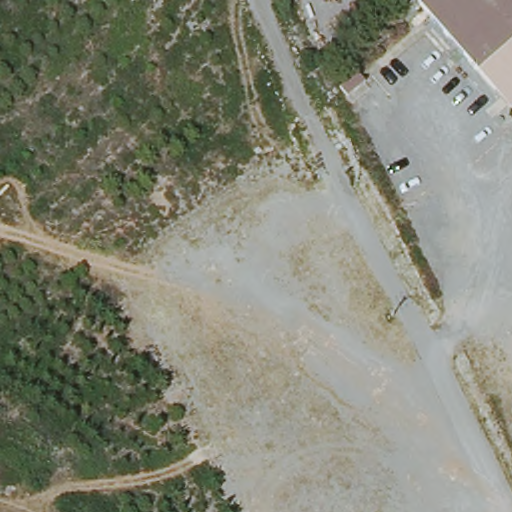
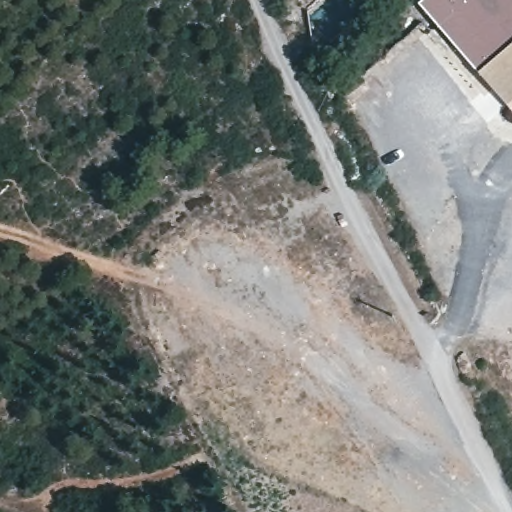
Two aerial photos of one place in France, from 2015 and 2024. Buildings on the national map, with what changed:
unchanged [(426,0),(512,0),(512,109),(421,5),(426,0)]
unchanged [(359,74),(370,87),(351,102),(340,90),(359,74)]

